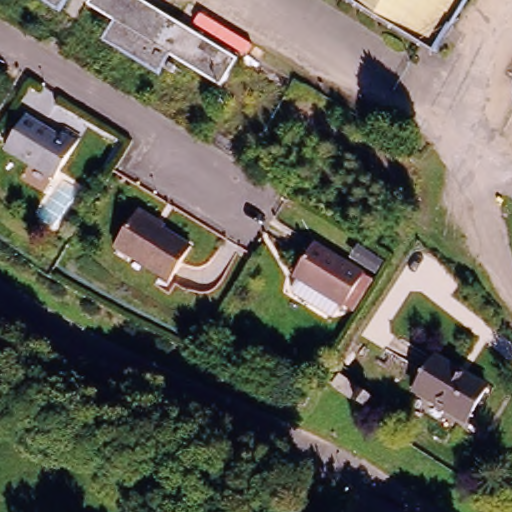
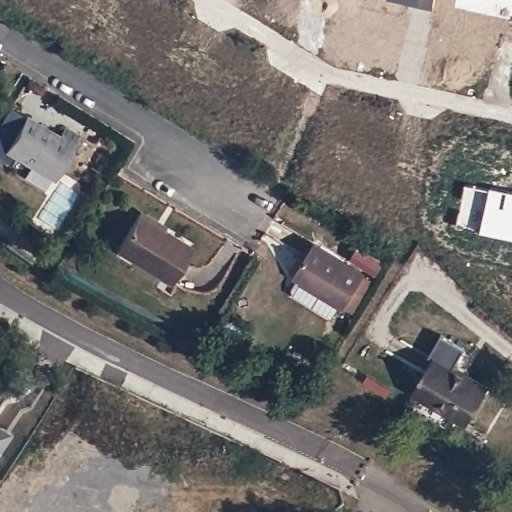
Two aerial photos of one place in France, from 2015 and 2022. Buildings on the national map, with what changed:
demolished [(59,5),(52,0),(62,0),(59,5)]
demolished [(171,49),(167,55),(176,61),(171,69),(161,62),(157,69),(103,36),(115,17),(91,0),(149,0),(238,55),(221,81),(171,49)]
demolished [(454,6),(449,16),(450,17),(433,45),(359,0),(458,0),(454,6)]
unchanged [(67,124),(81,134),(55,176),(8,146),(28,114),(60,135),(67,124)]
unchanged [(173,276),(119,243),(139,210),(193,242),(173,276)]
unchanged [(350,236),(372,250),(365,262),(343,248),(350,236)]
unchanged [(292,289),(291,283),(296,274),(293,272),(313,240),(363,270),(363,271),(371,276),(366,283),(351,306),(343,302),(339,300),(330,313),(292,289)]
unchanged [(462,413),(408,382),(429,344),(484,376),(462,413)]
unchanged [(347,395),(339,389),(333,384),(339,375),(345,380),(354,386),(347,395)]
unchanged [(369,409),(354,398),(359,389),(376,401),(369,409)]
new [(8,435),(0,448),(0,429),(8,435)]

